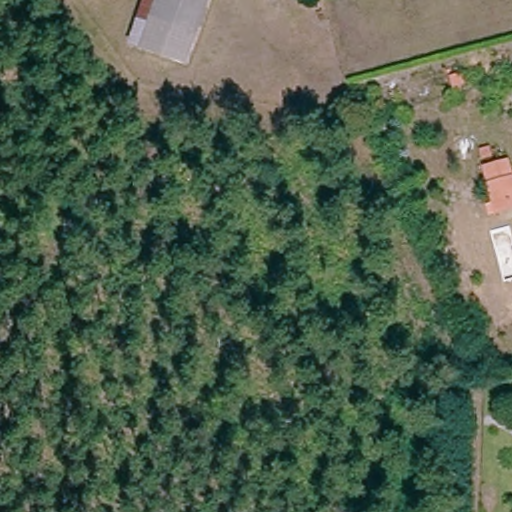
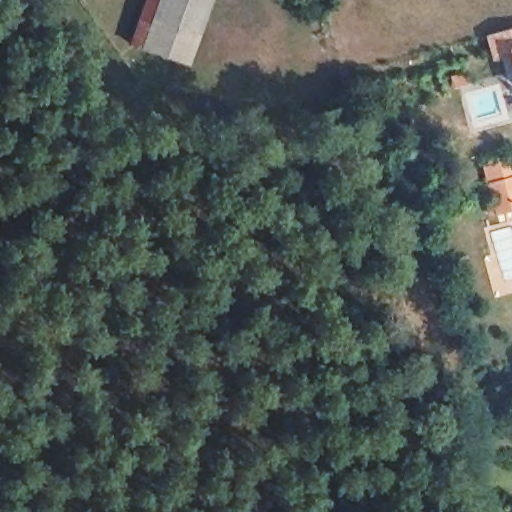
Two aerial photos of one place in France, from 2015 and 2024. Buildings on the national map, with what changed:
unchanged [(131,50),(148,0),(214,0),(187,71),(131,50)]
new [(491,61),(485,36),(512,29),(512,69),(509,56),(491,61)]
unchanged [(498,208),(490,181),(512,175),(512,204),(511,204),(498,208)]

